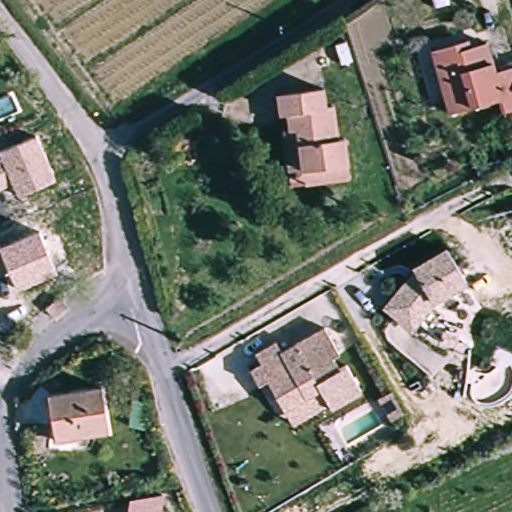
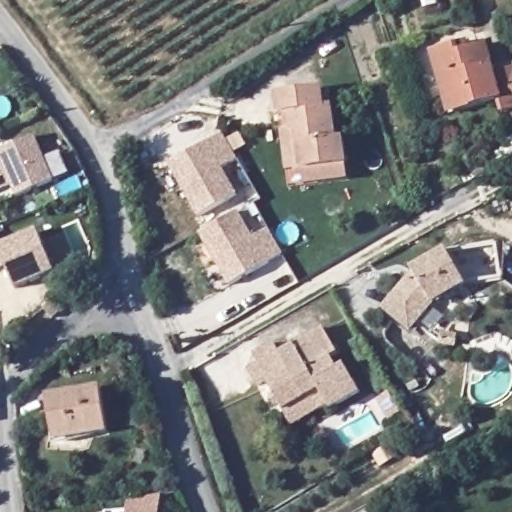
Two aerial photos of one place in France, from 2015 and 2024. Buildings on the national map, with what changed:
unchanged [(510,106),(504,94),(454,110),(432,47),(454,40),(458,51),(483,43),(494,71),(512,65),(512,105),(510,106)]
unchanged [(288,108),(282,108),(279,92),(324,84),(328,101),(334,101),(343,133),(348,133),(353,157),(313,166),(301,122),(293,123),(288,108)]
unchanged [(301,122),(313,166),(353,157),(355,175),(323,182),(296,184),(283,126),(293,123),(301,122)]
new [(167,165),(223,134),(238,161),(223,170),(238,197),(198,219),(167,165)]
unchanged [(0,153),(36,139),(55,182),(18,197),(13,185),(0,189),(0,153)]
new [(269,230),(284,257),(229,288),(199,234),(238,211),(254,238),(269,230)]
unchanged [(39,232),(56,274),(18,289),(8,263),(0,267),(0,244),(0,245),(39,232)]
new [(463,284),(464,283),(447,254),(496,246),(501,279),(463,284)]
unchanged [(464,283),(431,302),(408,330),(384,308),(415,271),(413,268),(445,250),(464,283)]
unchanged [(55,304),(37,316),(30,306),(49,296),(55,304)]
unchanged [(281,412),(266,384),(255,388),(247,373),(258,367),(251,357),(261,352),(273,346),(276,354),(320,330),(336,357),(330,360),(336,373),(344,369),(360,395),(329,413),(326,406),(290,427),(281,412)]
unchanged [(100,385),(110,428),(63,440),(53,398),(100,385)]
unchanged [(388,407),(401,401),(413,423),(398,428),(388,407)]

